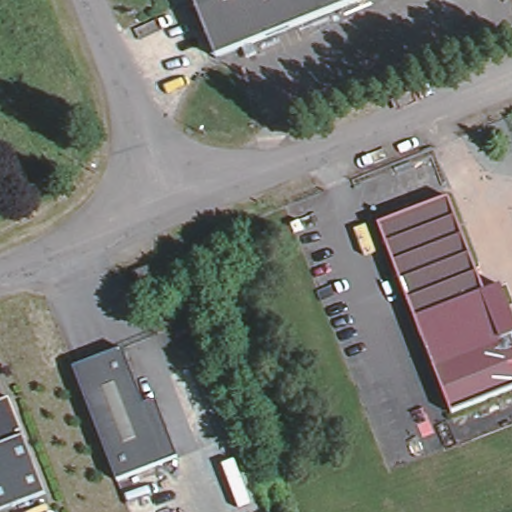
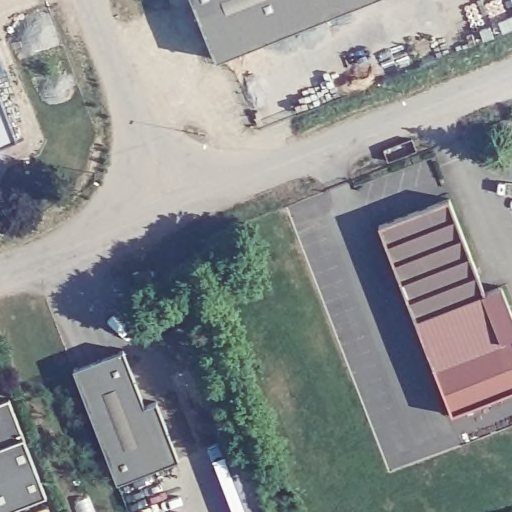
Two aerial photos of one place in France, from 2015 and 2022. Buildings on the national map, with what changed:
unchanged [(219,61),(194,0),(371,0),(219,61)]
new [(17,138),(0,145),(0,95),(17,138)]
unchanged [(435,366),(380,224),(450,196),(493,310),(512,303),(512,304),(512,390),(453,413),(435,366)]
unchanged [(150,267),(154,277),(138,283),(135,273),(150,267)]
unchanged [(166,464),(115,484),(72,372),(123,352),(145,408),(157,404),(168,434),(178,459),(166,464)]
unchanged [(7,398),(44,496),(1,512),(0,512),(0,401),(7,398)]

